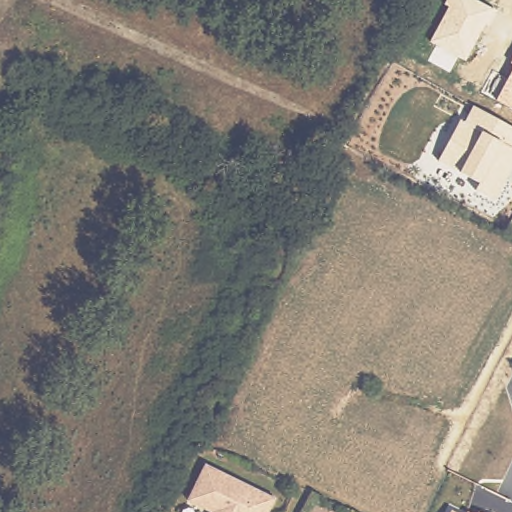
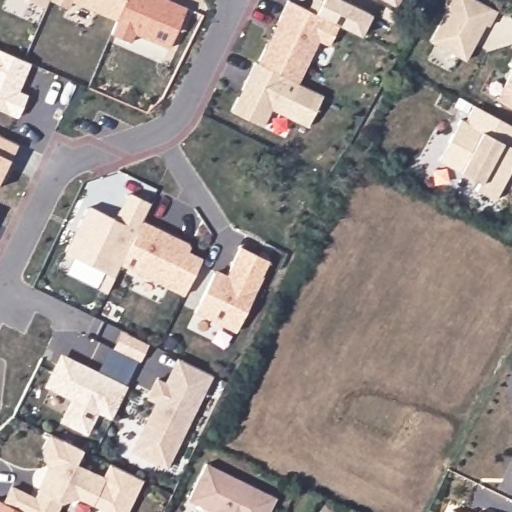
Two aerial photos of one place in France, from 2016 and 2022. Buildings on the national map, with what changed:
new [(26,0),(47,0),(44,8),(26,0)]
new [(70,1),(67,8),(49,0),(123,0),(115,20),(70,1)]
new [(167,48),(133,33),(129,41),(110,33),(123,0),(168,0),(185,7),(167,48)]
new [(256,61),(286,0),(287,0),(307,8),(311,0),(344,0),(371,13),(360,36),(337,25),(328,45),(317,40),(298,82),(321,95),(306,126),(270,109),(261,125),(230,110),(253,61),(256,61)]
new [(382,0),(396,0),(393,6),(382,0)]
unchanged [(449,7),(445,5),(447,0),(475,0),(496,11),(490,27),(486,26),(466,61),(428,41),(449,7)]
new [(26,98),(16,120),(0,113),(0,54),(29,66),(21,83),(17,94),(26,98)]
unchanged [(512,59),(512,63),(510,63),(512,59)]
unchanged [(512,75),(512,108),(497,101),(512,75)]
unchanged [(512,170),(496,199),(477,190),(481,182),(436,164),(460,120),(466,122),(472,105),(512,127),(512,170)]
new [(0,184),(0,139),(16,146),(9,162),(13,165),(6,179),(3,185),(0,184)]
new [(87,204),(115,216),(127,191),(150,203),(142,221),(186,241),(190,245),(187,251),(201,257),(182,295),(119,264),(105,292),(64,271),(72,255),(64,252),(87,204)]
new [(215,273),(227,279),(242,248),(270,261),(262,276),(264,277),(237,332),(196,313),(215,273)]
new [(123,328),(150,341),(141,359),(114,346),(123,328)]
new [(110,345),(114,346),(139,357),(124,388),(95,375),(110,345)]
new [(156,398),(148,394),(157,376),(170,382),(182,357),(212,371),(168,464),(133,447),(156,398)]
new [(60,362),(85,374),(87,371),(127,390),(112,420),(98,413),(87,436),(62,424),(73,401),(46,389),(60,362)]
new [(46,474),(50,467),(45,450),(52,434),(84,449),(76,463),(105,477),(112,462),(142,477),(125,512),(100,512),(99,512),(101,506),(79,495),(64,500),(58,512),(0,512),(0,500),(5,502),(13,487),(35,498),(40,488),(46,474)]
unchanged [(276,499),(270,512),(214,512),(191,501),(209,465),(276,499)]
unchanged [(452,511),(456,512),(452,512),(452,511)]
unchanged [(466,511),(468,512),(466,512),(466,511)]
unchanged [(476,511),(480,512),(476,512),(476,511)]

